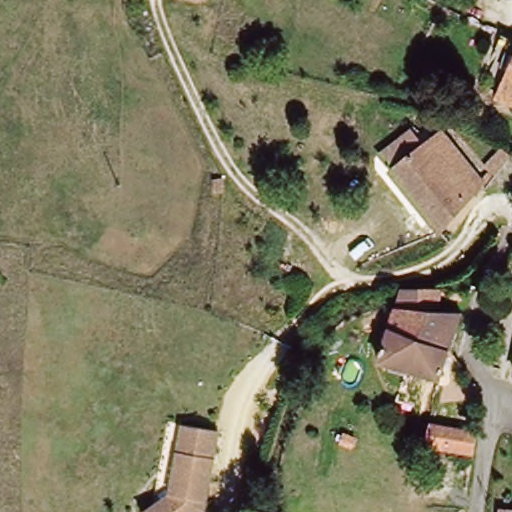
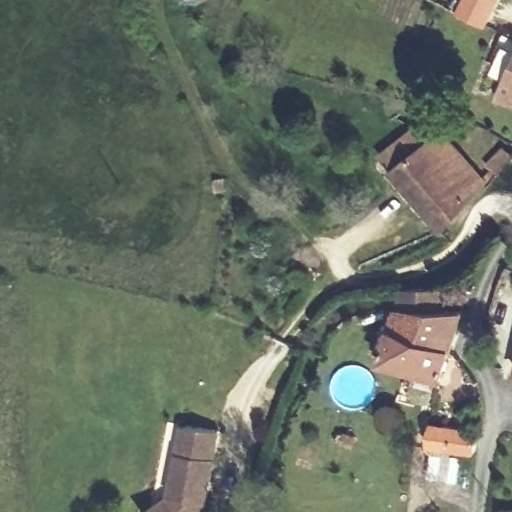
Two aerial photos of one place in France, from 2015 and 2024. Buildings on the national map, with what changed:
new [(499,0),(486,27),(458,14),(464,0),(499,0)]
unchanged [(507,62),(512,51),(512,65),(507,62)]
unchanged [(509,90),(512,83),(512,92),(509,90)]
unchanged [(447,130),(493,174),(502,165),(504,167),(509,172),(500,180),(496,176),(462,214),(452,225),(399,173),(447,130)]
unchanged [(501,159),(512,146),(512,167),(511,168),(507,164),(501,159)]
unchanged [(404,298),(406,284),(415,284),(444,290),(443,303),(466,307),(457,376),(396,368),(402,319),(402,315),(404,298)]
unchanged [(173,494),(182,423),(217,428),(207,506),(199,512),(150,512),(173,494)]
unchanged [(485,457),(437,453),(438,426),(487,429),(485,457)]
unchanged [(511,509),(512,509),(512,512),(510,512),(511,509)]

